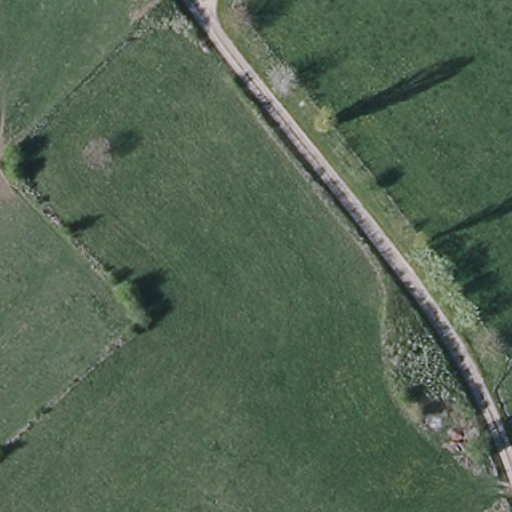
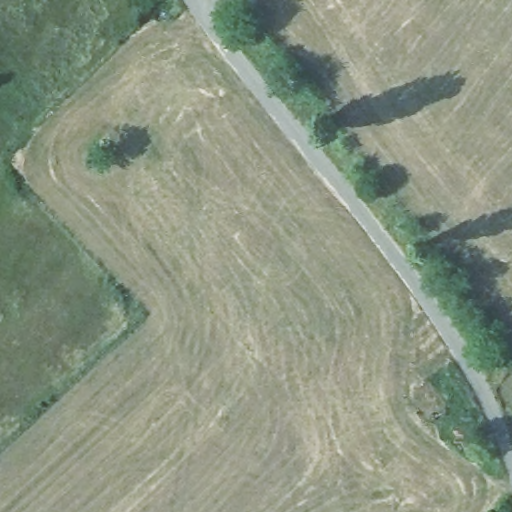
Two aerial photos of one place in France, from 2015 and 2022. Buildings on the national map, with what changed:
[]

